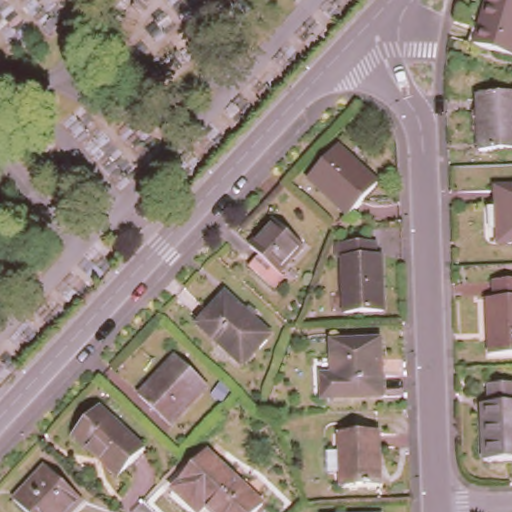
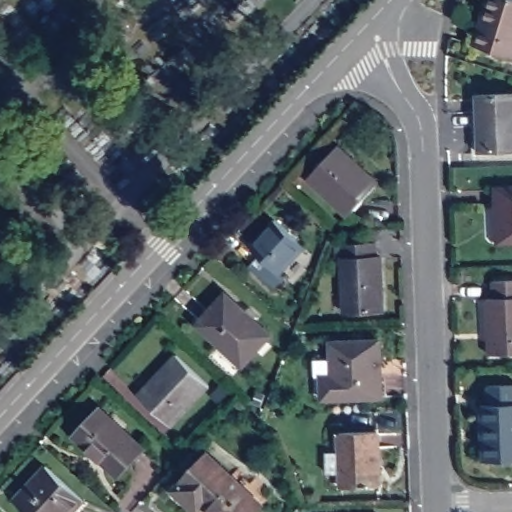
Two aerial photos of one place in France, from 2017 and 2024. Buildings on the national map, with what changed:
unchanged [(475,44),(489,0),(512,0),(512,55),(475,44)]
unchanged [(480,151),(478,95),(512,94),(512,150),(480,151)]
unchanged [(347,219),(307,181),(338,149),(377,186),(347,219)]
unchanged [(503,241),(502,184),(512,184),(512,241),(503,241)]
unchanged [(285,263),(290,269),(278,282),(253,258),(263,247),(255,239),(280,213),(307,240),(285,263)]
unchanged [(377,250),(377,265),(382,265),(383,317),(346,318),(342,251),(377,250)]
unchanged [(491,351),(489,296),(497,296),(496,278),(512,278),(512,351),(491,351)]
unchanged [(242,363),(198,322),(225,294),(268,335),(242,363)]
unchanged [(323,399),(323,378),(333,378),(333,344),(378,342),(381,397),(323,399)]
unchanged [(174,427),(143,398),(180,358),(211,387),(174,427)]
unchanged [(487,403),(495,403),(495,383),(512,383),(512,457),(490,458),(487,403)]
unchanged [(117,474),(73,432),(100,405),(143,446),(117,474)]
unchanged [(347,485),(345,429),(383,428),(385,484),(347,485)]
unchanged [(214,512),(206,504),(199,512),(196,512),(172,489),(208,451),(262,503),(253,512),(214,512)]
unchanged [(27,512),(17,503),(50,468),(88,504),(80,512),(27,512)]

